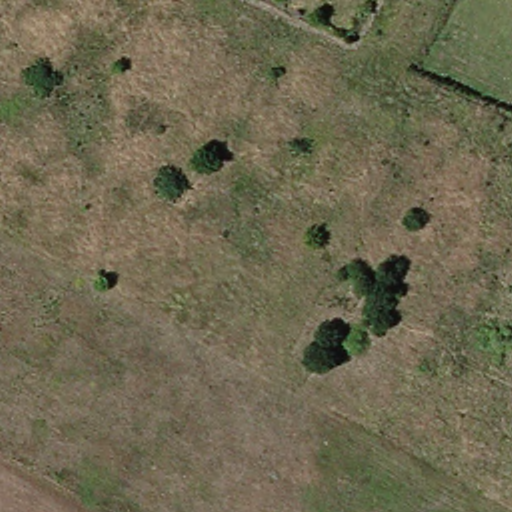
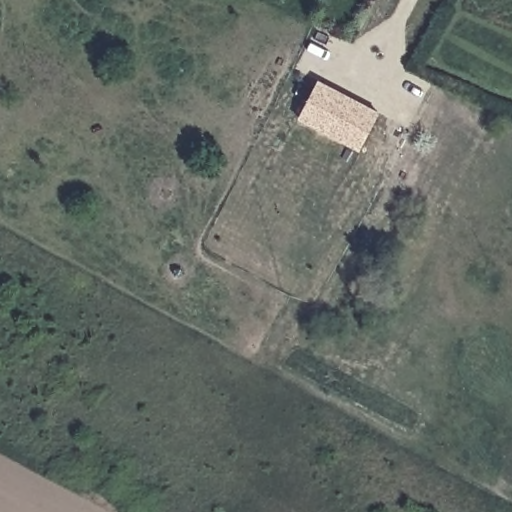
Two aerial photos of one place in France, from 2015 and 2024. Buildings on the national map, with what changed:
new [(380,111),(361,148),(300,116),(319,79),(380,111)]

